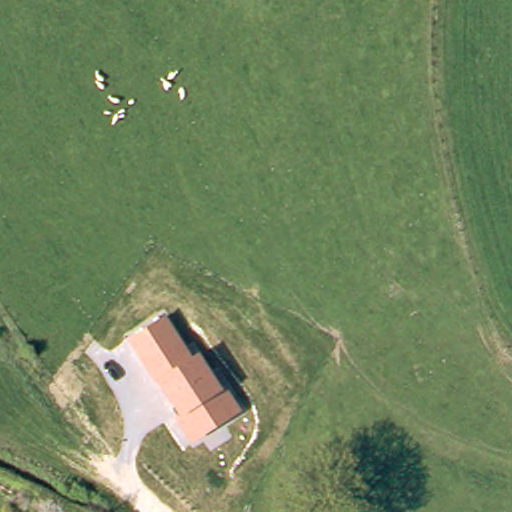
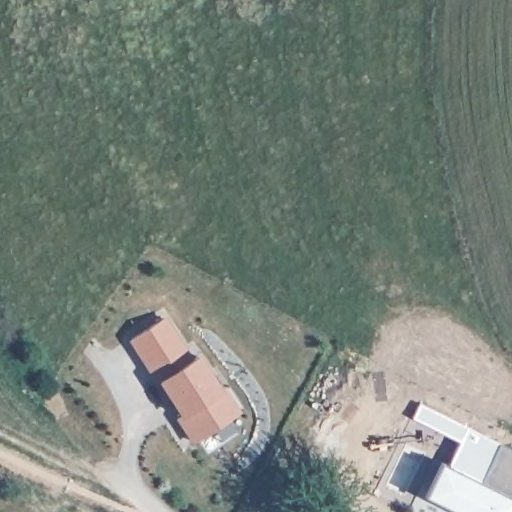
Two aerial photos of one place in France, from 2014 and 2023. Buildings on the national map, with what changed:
unchanged [(165,316),(194,357),(200,353),(222,388),(226,385),(242,411),(192,443),(176,417),(180,414),(159,382),(156,386),(129,340),(165,316)]
new [(480,483),(500,443),(512,449),(512,507),(510,512),(457,512),(424,495),(440,463),(480,483)]

